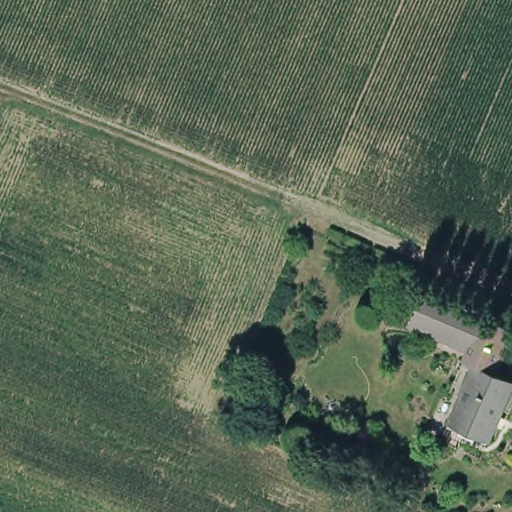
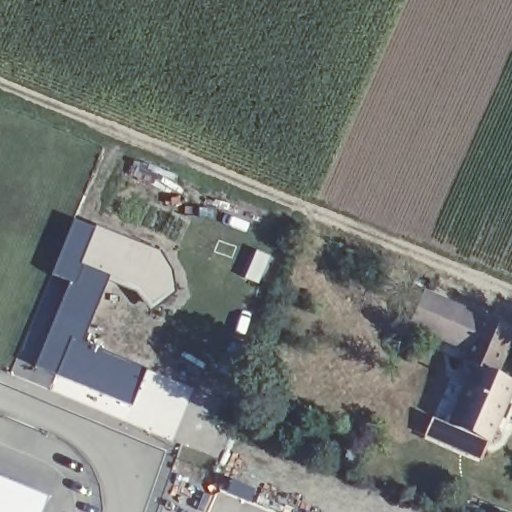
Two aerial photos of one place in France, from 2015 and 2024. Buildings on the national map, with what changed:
new [(68,283),(50,276),(73,221),(93,229),(95,227),(160,252),(171,271),(175,292),(150,312),(135,292),(107,281),(80,343),(145,369),(130,407),(33,367),(68,283)]
unchanged [(418,297),(482,321),(470,352),(403,326),(418,297)]
unchanged [(465,363),(470,352),(482,321),(509,332),(512,334),(512,343),(506,340),(492,375),(473,367),(465,363)]
unchanged [(448,427),(473,367),(492,375),(512,383),(512,387),(487,445),(448,427)]
new [(45,500),(40,512),(0,512),(0,481),(45,500)]

